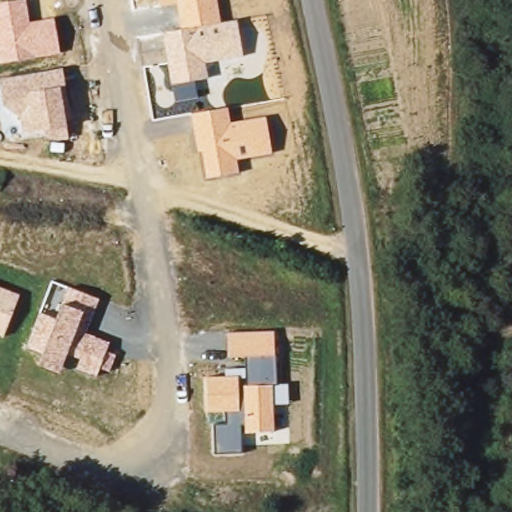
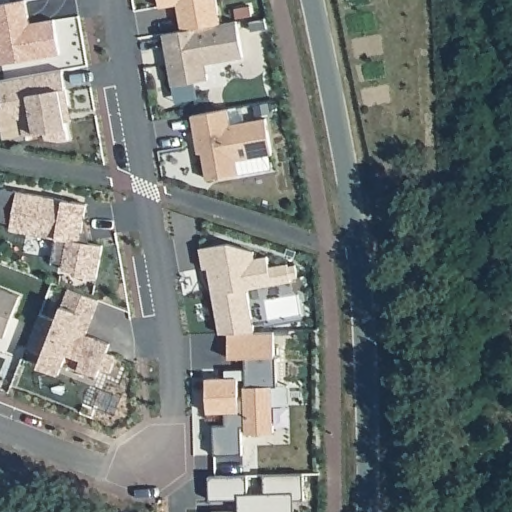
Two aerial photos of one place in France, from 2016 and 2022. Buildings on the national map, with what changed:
unchanged [(31,24),(55,19),(61,53),(1,63),(0,60),(0,3),(16,0),(27,0),(31,24)]
unchanged [(219,23),(237,20),(245,57),(206,63),(209,80),(195,81),(197,97),(175,101),(162,35),(181,31),(177,4),(160,8),(159,0),(215,0),(219,23)]
unchanged [(62,67),(69,106),(65,107),(72,141),(46,136),(45,131),(22,133),(20,116),(4,105),(0,79),(62,67)]
unchanged [(230,109),(232,124),(266,117),(272,155),(237,161),(240,173),(207,179),(203,151),(197,151),(191,115),(230,109)]
new [(71,244),(94,249),(88,282),(68,279),(69,276),(54,273),(55,266),(44,264),(47,241),(2,233),(3,227),(0,226),(0,193),(79,207),(71,244)]
new [(297,278),(291,279),(291,281),(247,288),(255,331),(228,333),(219,333),(208,266),(202,268),(200,248),(229,242),(254,251),(255,258),(267,256),(269,266),(287,263),(288,265),(296,264),(297,278)]
unchanged [(3,336),(0,335),(0,286),(19,293),(3,336)]
unchanged [(101,299),(87,333),(111,341),(107,351),(115,353),(109,373),(99,370),(95,379),(75,372),(79,359),(67,356),(59,375),(38,367),(42,353),(27,349),(39,313),(56,318),(69,286),(101,299)]
unchanged [(275,330),(277,386),(288,384),(290,404),(273,405),(275,432),(244,433),(244,426),(240,426),(241,452),(215,453),(214,423),(226,422),(226,412),(207,413),(207,378),(225,377),(225,369),(246,368),(246,357),(230,357),(228,333),(275,330)]
new [(237,499),(254,498),(253,480),(293,479),(293,506),(283,506),(283,512),(227,512),(227,504),(199,505),(198,481),(237,480),(237,499)]

